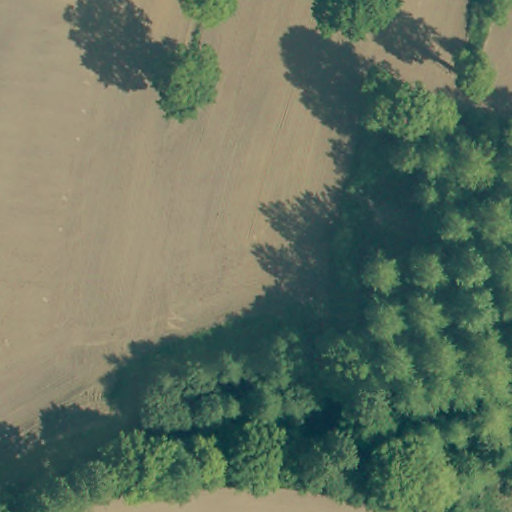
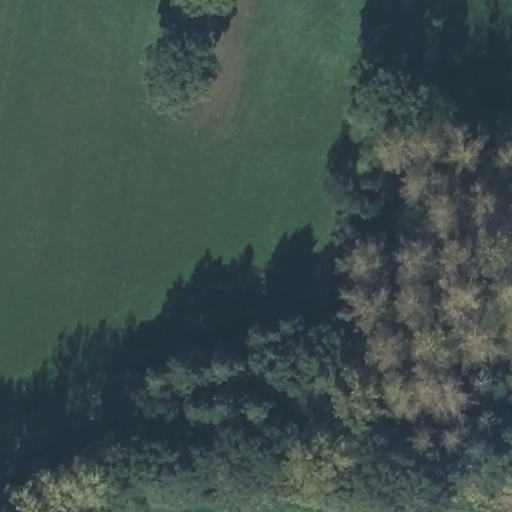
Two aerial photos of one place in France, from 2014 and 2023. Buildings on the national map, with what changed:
[]

